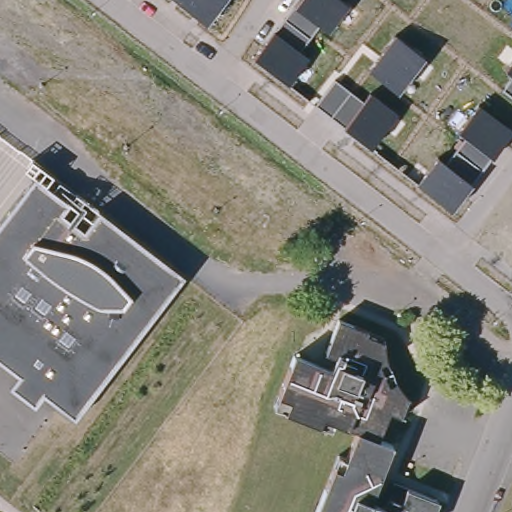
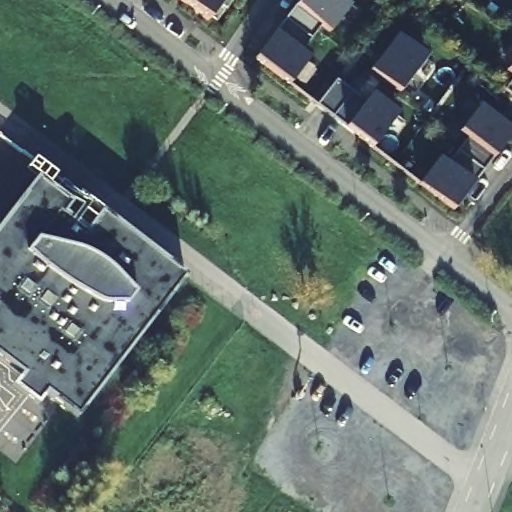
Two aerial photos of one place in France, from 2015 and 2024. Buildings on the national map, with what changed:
unchanged [(204,16),(181,0),(215,0),(204,16)]
unchanged [(284,85),(249,57),(294,0),(336,0),(345,6),(325,32),(315,24),(297,47),(309,54),(284,85)]
unchanged [(388,26),(425,52),(398,89),(362,64),(388,26)]
unchanged [(502,66),(512,54),(512,93),(502,85),(511,75),(502,66)]
unchanged [(312,102),(332,76),(353,93),(361,81),(397,106),(370,144),(332,118),(312,102)]
unchanged [(432,152),(445,161),(465,135),(452,126),(475,96),(512,123),(512,127),(454,208),(412,181),(432,152)]
unchanged [(179,272),(74,415),(44,393),(35,406),(7,385),(16,373),(0,362),(0,216),(36,166),(179,272)]
demolished [(333,421),(322,417),(319,425),(285,412),(290,400),(280,396),(295,357),(330,371),(335,357),(325,353),(339,321),(383,338),(384,343),(385,350),(387,357),(388,363),(390,369),(392,375),(394,379),(397,384),(399,389),(402,394),(404,398),(409,404),(402,419),(392,415),(389,414),(377,440),(392,446),(370,502),(384,507),(394,484),(438,501),(434,512),(317,512),(334,470),(345,474),(350,461),(361,432),(333,421)]

